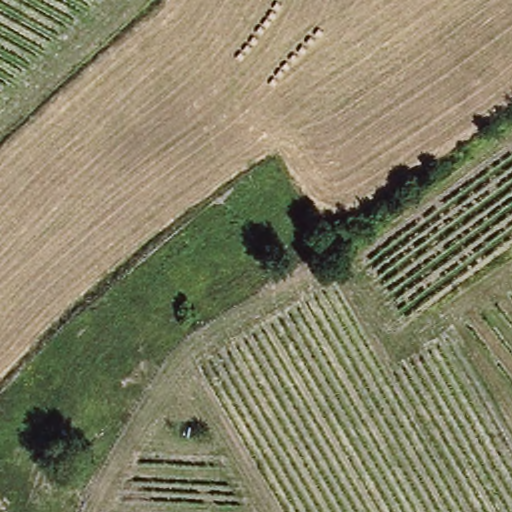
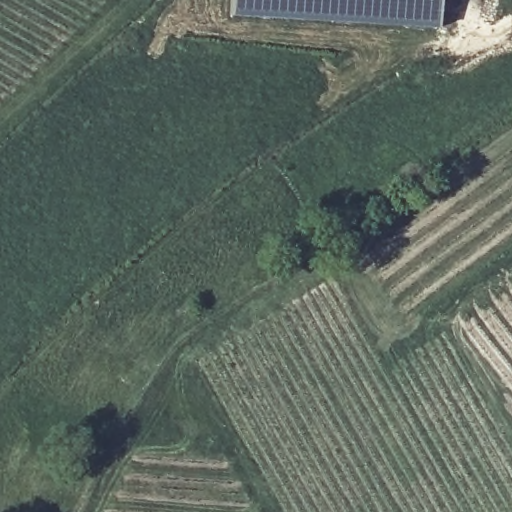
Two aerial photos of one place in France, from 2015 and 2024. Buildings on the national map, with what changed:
new [(441,0),(439,29),(230,16),(231,0),(441,0)]

